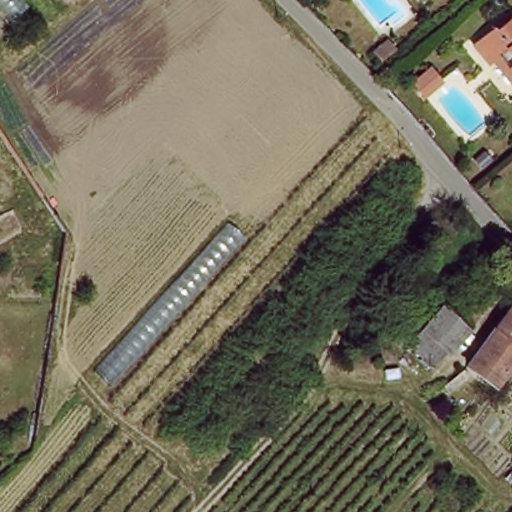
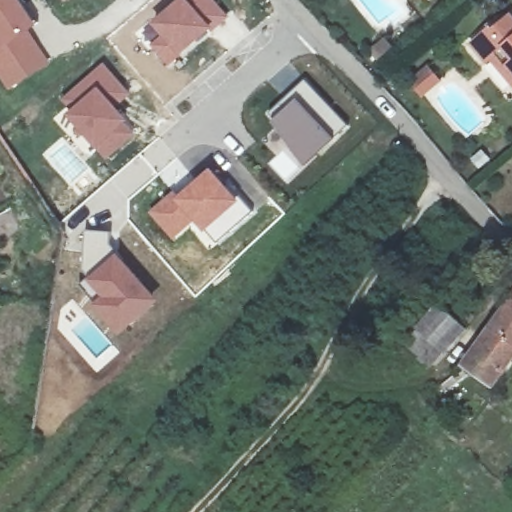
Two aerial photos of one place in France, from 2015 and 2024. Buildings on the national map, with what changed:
new [(37,23),(28,28),(50,63),(7,92),(0,80),(0,0),(21,0),(37,23)]
unchanged [(67,2),(65,0),(69,0),(67,2)]
new [(159,36),(150,24),(176,0),(215,0),(228,16),(168,65),(149,44),(159,36)]
unchanged [(480,71),(464,52),(483,35),(485,39),(504,23),(512,32),(512,88),(490,62),(480,71)]
new [(102,62),(129,93),(116,106),(136,133),(105,159),(65,113),(68,110),(59,99),(102,62)]
new [(426,64),(440,80),(420,96),(407,80),(426,64)]
new [(304,79),(347,125),(305,164),(265,114),(304,79)]
new [(215,245),(203,233),(193,223),(171,241),(146,211),(172,189),(177,195),(210,168),(240,200),(252,212),(215,245)]
unchanged [(23,229),(0,241),(0,215),(12,209),(23,229)]
new [(99,267),(93,260),(102,251),(98,248),(91,244),(89,257),(86,264),(86,231),(108,231),(109,245),(115,254),(117,252),(158,300),(118,335),(92,303),(99,296),(85,280),(99,267)]
unchanged [(448,303),(461,291),(483,313),(441,356),(408,326),(439,294),(448,303)]
unchanged [(487,390),(462,371),(512,304),(512,355),(505,365),(487,390)]

